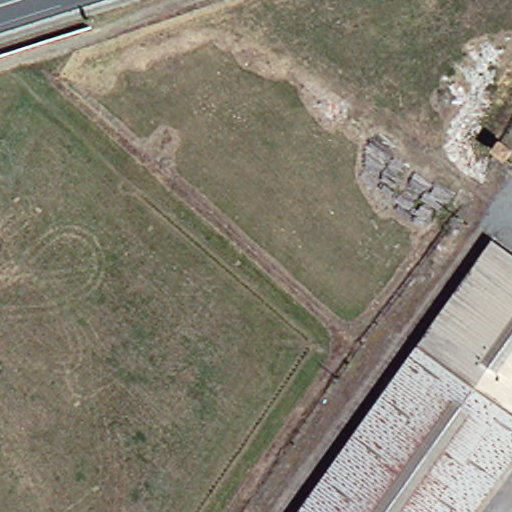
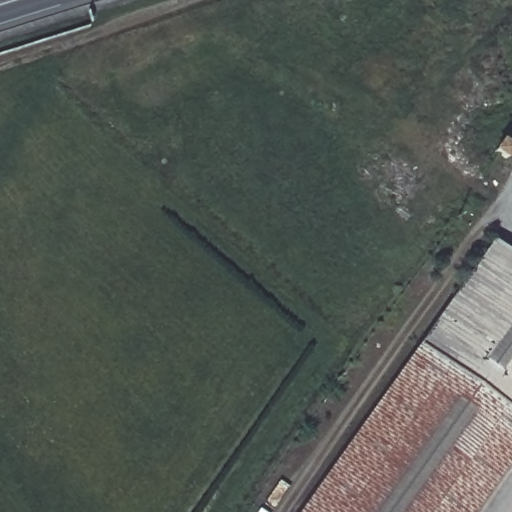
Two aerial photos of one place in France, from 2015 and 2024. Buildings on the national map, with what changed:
unchanged [(496,152),(501,144),(511,151),(506,159),(496,152)]
unchanged [(487,244),(512,262),(512,424),(410,353),(487,244)]
unchanged [(512,424),(512,445),(475,499),(466,512),(299,512),(410,353),(512,424)]

